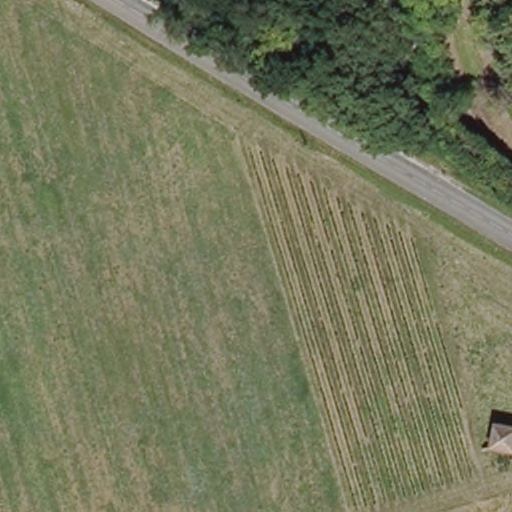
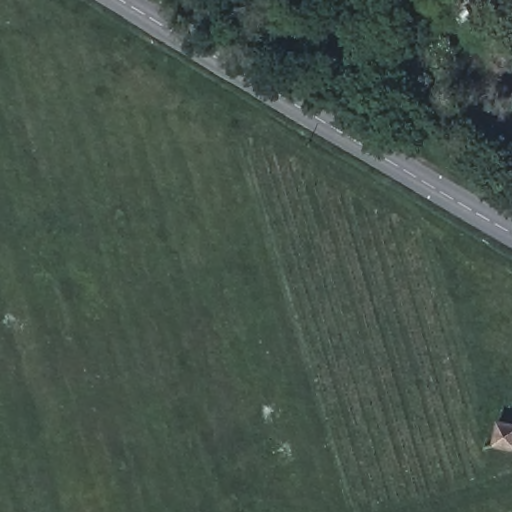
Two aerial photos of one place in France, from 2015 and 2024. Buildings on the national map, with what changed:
unchanged [(488,445),(493,421),(512,425),(512,450),(488,445)]

